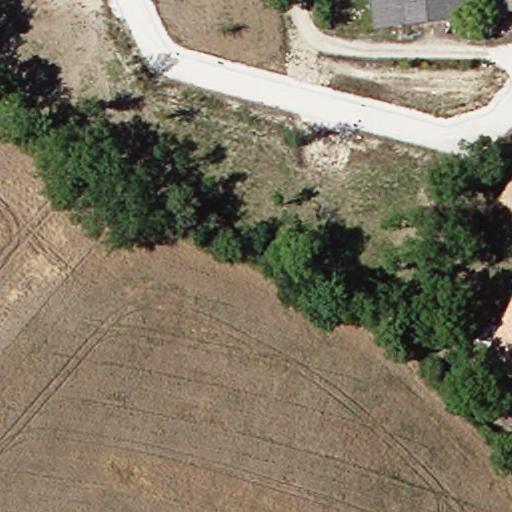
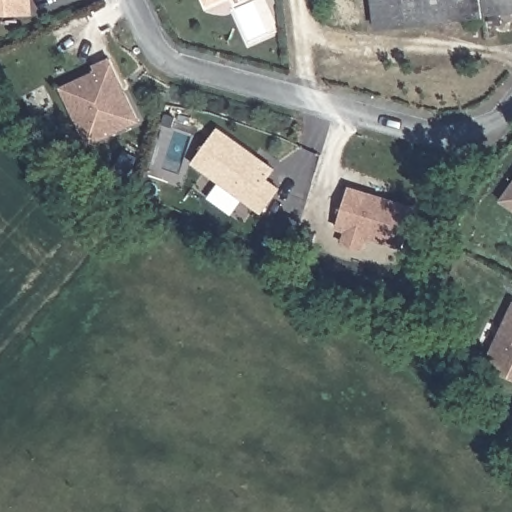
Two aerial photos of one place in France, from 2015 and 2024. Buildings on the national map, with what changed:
unchanged [(0,15),(0,0),(32,0),(32,15),(0,15)]
unchanged [(205,5),(203,0),(218,0),(205,5)]
unchanged [(375,32),(371,0),(512,0),(512,16),(375,32)]
new [(141,122),(87,145),(60,86),(95,70),(92,65),(110,57),(141,122)]
new [(269,178),(281,186),(261,213),(192,163),(220,126),(275,168),(269,178)]
new [(351,189),(417,210),(405,249),(338,229),(351,189)]
unchanged [(507,200),(512,193),(512,203),(507,200)]
new [(369,238),(365,252),(345,247),(350,232),(369,238)]
unchanged [(484,365),(512,305),(512,378),(484,365)]

